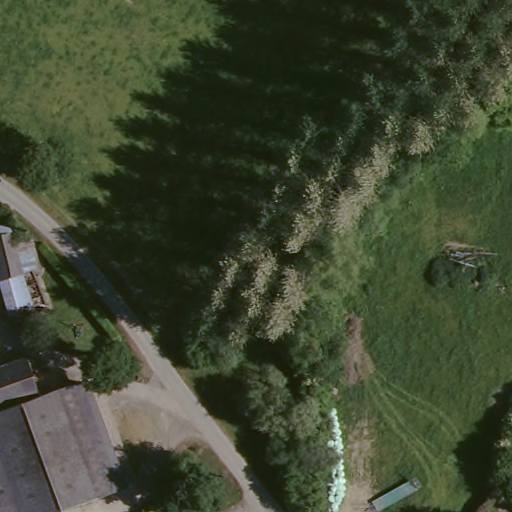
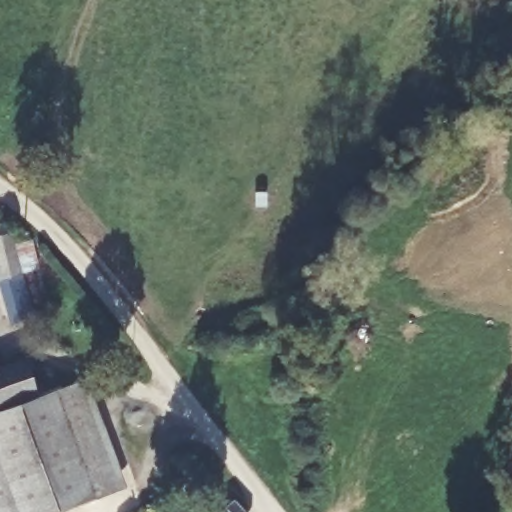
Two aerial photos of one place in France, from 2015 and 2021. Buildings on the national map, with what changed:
unchanged [(11,218),(20,240),(35,235),(44,263),(30,269),(45,308),(17,320),(12,312),(0,265),(0,223),(11,218)]
unchanged [(5,360),(35,349),(46,387),(0,402),(0,347),(5,360)]
unchanged [(46,387),(60,382),(84,375),(125,483),(102,491),(43,512),(33,512),(0,423),(0,402),(46,387)]
unchanged [(33,512),(0,512),(0,423),(33,512)]

